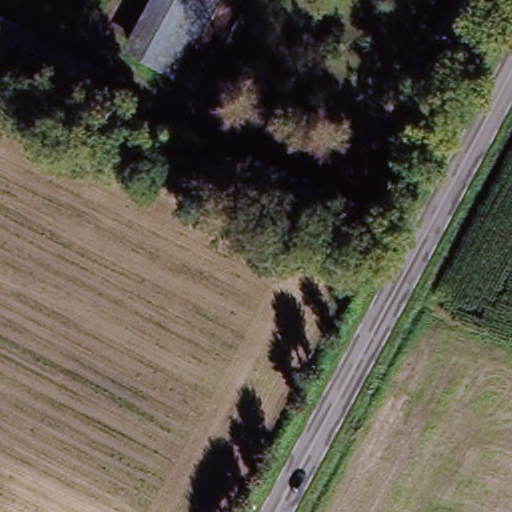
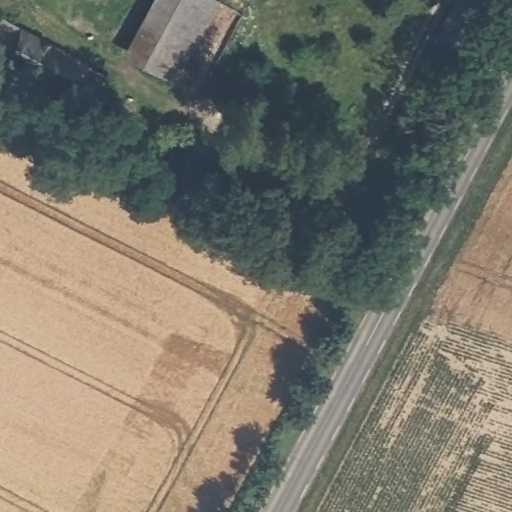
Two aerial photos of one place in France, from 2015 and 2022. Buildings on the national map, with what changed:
unchanged [(180,86),(124,56),(154,0),(213,0),(222,5),(180,86)]
unchanged [(444,34),(463,0),(497,0),(469,49),(444,34)]
unchanged [(102,73),(89,99),(7,58),(20,33),(102,73)]

